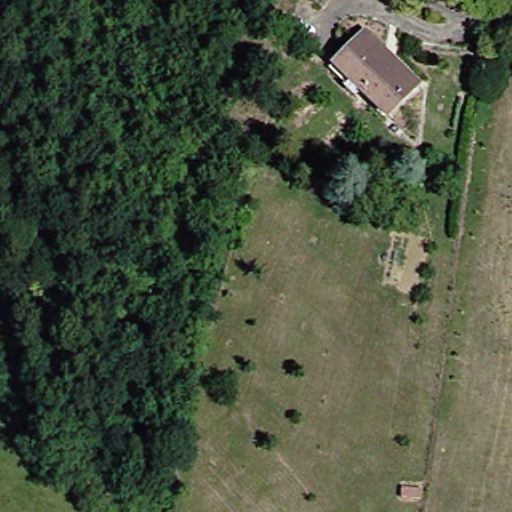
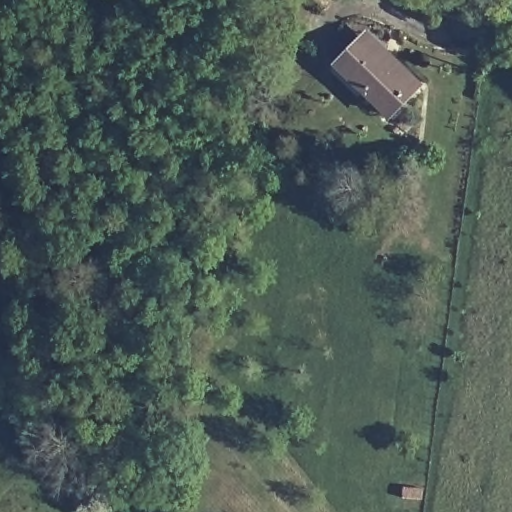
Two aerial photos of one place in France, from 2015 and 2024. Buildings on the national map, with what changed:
unchanged [(417,82),(386,116),(347,81),(338,73),(350,58),(369,38),(417,82)]

